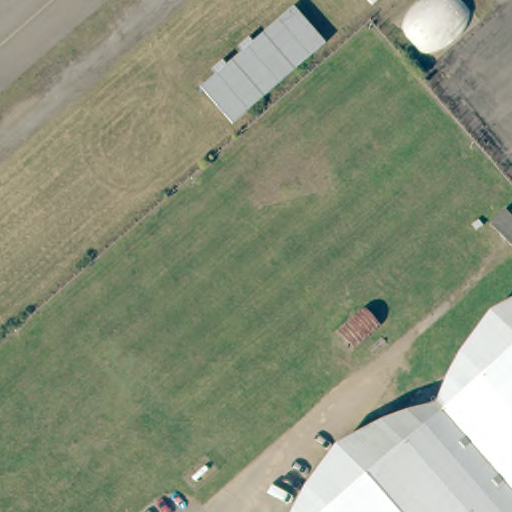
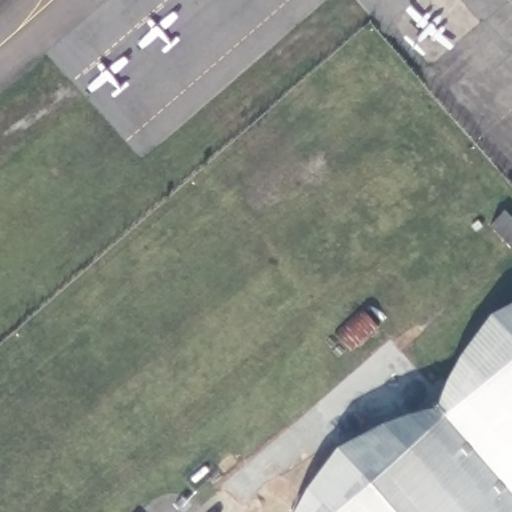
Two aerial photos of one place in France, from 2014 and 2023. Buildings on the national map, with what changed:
demolished [(369,5),(365,0),(374,0),(369,5)]
demolished [(212,74),(209,69),(221,60),(224,65),(239,50),(238,46),(247,37),(250,41),(292,6),(321,42),(230,124),(199,85),(212,74)]
unchanged [(512,219),(512,251),(489,226),(503,210),(512,219)]
unchanged [(318,464),(333,444),(382,422),(433,403),(450,366),(469,335),(486,310),(512,298),(512,512),(292,512),(303,489),(318,464)]

